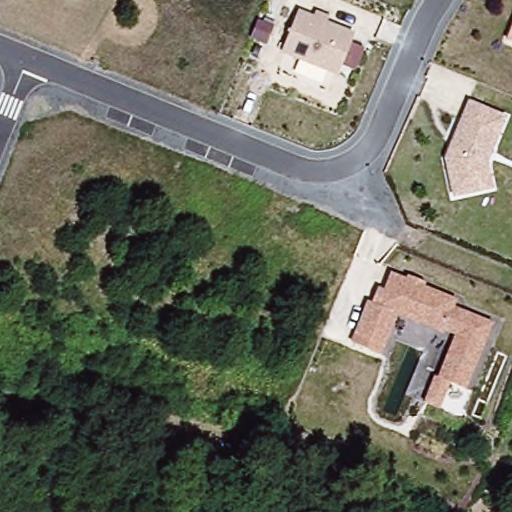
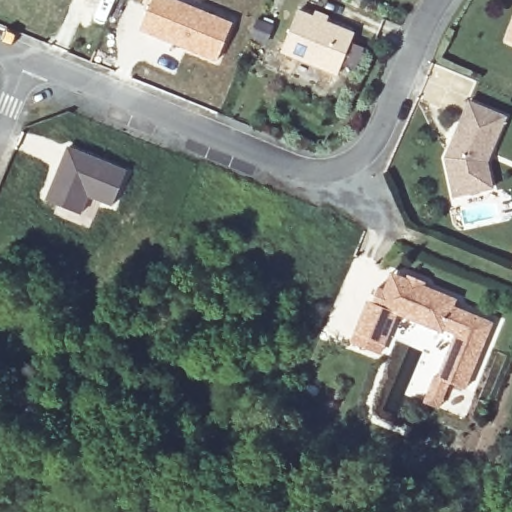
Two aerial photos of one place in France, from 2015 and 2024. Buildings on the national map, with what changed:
new [(177,0),(232,22),(215,62),(138,31),(152,0),(177,0)]
unchanged [(281,51),(299,7),(314,14),(316,9),(330,15),(327,20),(354,32),(337,75),(281,51)]
unchanged [(508,41),(512,31),(512,43),(508,41)]
unchanged [(443,157),(470,97),(508,116),(488,159),(495,187),(453,200),(443,157)]
new [(67,146),(126,169),(111,206),(89,197),(80,215),(44,200),(67,146)]
unchanged [(349,341),(365,302),(370,303),(375,287),(384,286),(389,272),(404,277),(405,272),(425,279),(423,285),(457,297),(454,307),(492,322),(467,389),(448,383),(440,407),(421,402),(431,374),(437,376),(451,337),(396,316),(381,355),(349,341)]

